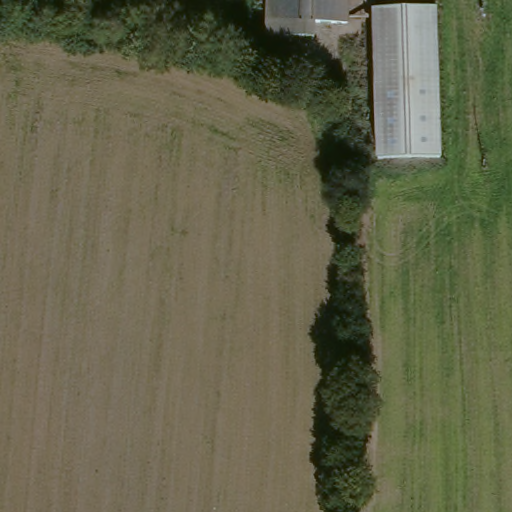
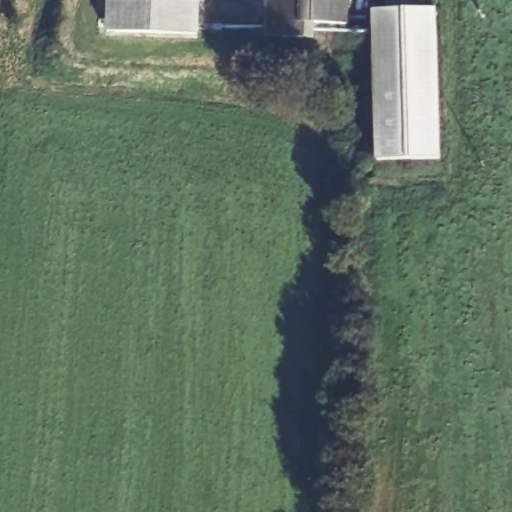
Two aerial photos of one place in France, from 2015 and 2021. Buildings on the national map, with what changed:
new [(199,34),(108,31),(108,0),(200,0),(199,34)]
unchanged [(328,30),(255,23),(256,0),(331,0),(328,30)]
unchanged [(374,17),(379,20),(381,20),(435,16),(437,99),(438,163),(438,166),(373,168),(371,100),(372,71),(373,52),(370,17),(374,17)]

